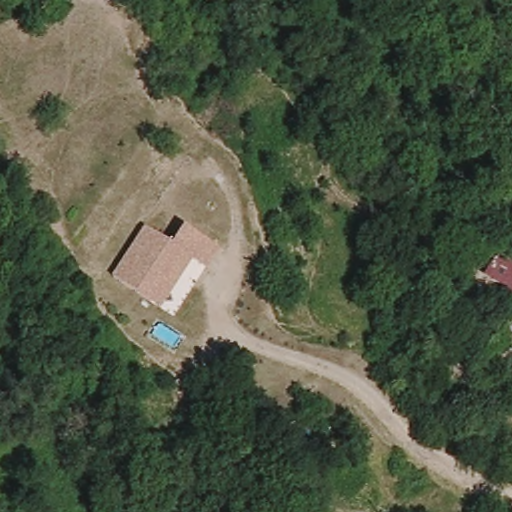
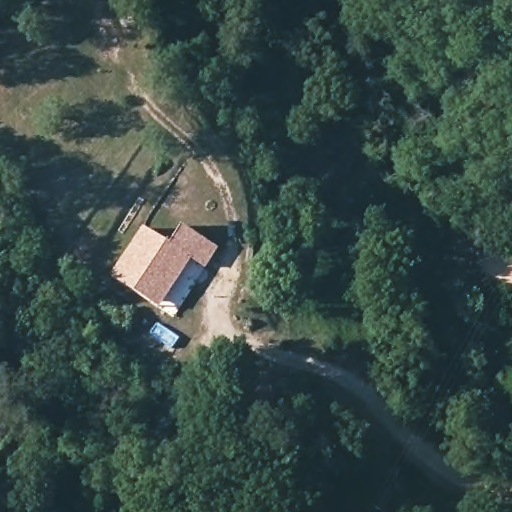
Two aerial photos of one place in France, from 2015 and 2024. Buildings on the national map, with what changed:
unchanged [(107,278),(140,228),(167,243),(180,225),(217,249),(205,268),(192,261),(158,308),(107,278)]
unchanged [(497,256),(512,261),(512,303),(503,299),(510,286),(487,277),(497,256)]

